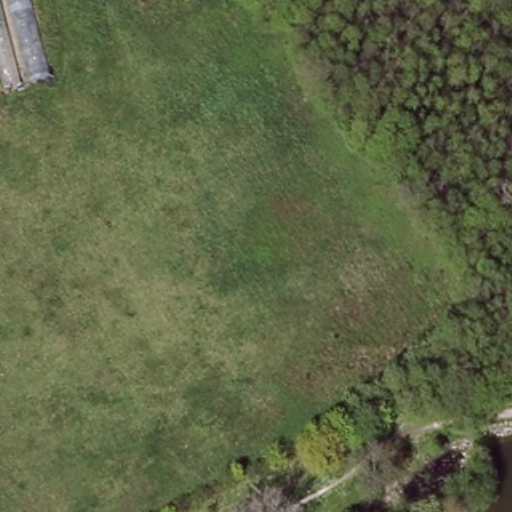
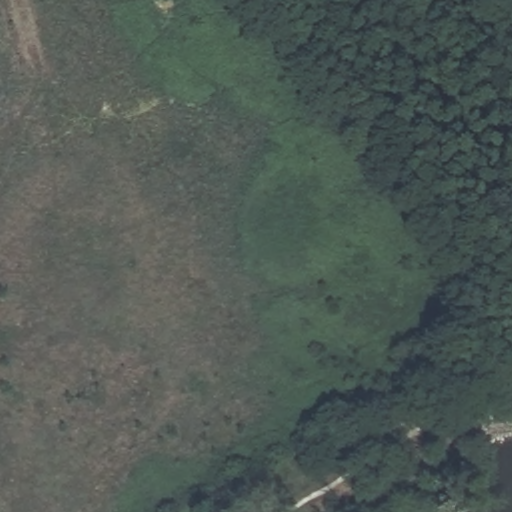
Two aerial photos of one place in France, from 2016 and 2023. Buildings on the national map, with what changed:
demolished [(50,76),(4,90),(0,76),(0,0),(30,0),(50,76)]

